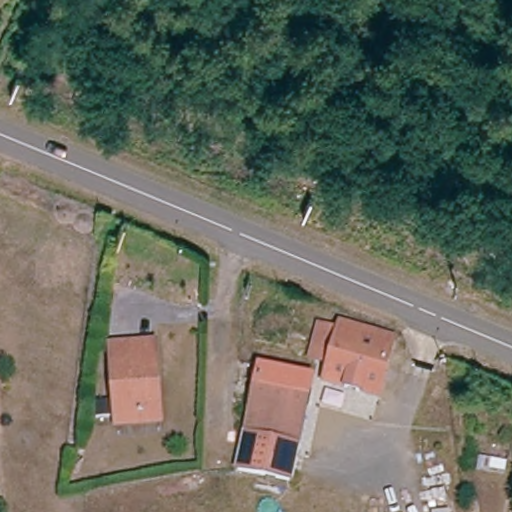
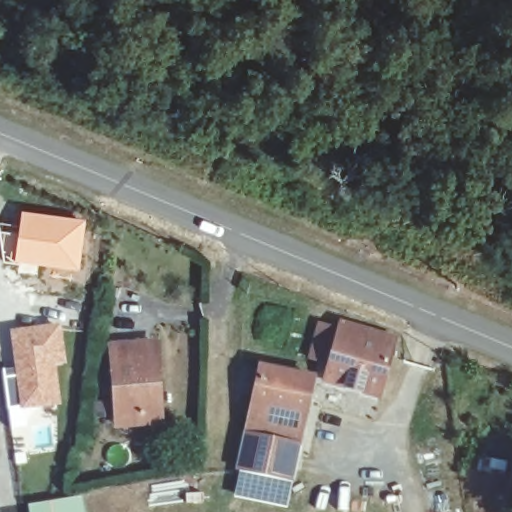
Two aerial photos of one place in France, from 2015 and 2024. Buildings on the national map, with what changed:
new [(86,218),(79,271),(38,265),(37,275),(18,273),(19,262),(14,262),(2,261),(0,241),(0,221),(18,222),(21,209),(86,218)]
new [(13,366),(8,329),(61,322),(67,364),(57,366),(62,405),(8,411),(1,367),(13,366)]
unchanged [(341,328),(395,342),(381,400),(327,387),(331,367),(318,365),(313,363),(320,331),(326,332),(339,335),(341,328)]
unchanged [(111,436),(111,424),(106,352),(149,347),(151,382),(155,432),(111,436)]
unchanged [(261,366),(313,378),(303,420),(273,413),(270,430),(248,427),(261,366)]
unchanged [(270,430),(273,413),(303,420),(291,478),(239,470),(248,427),(270,430)]

